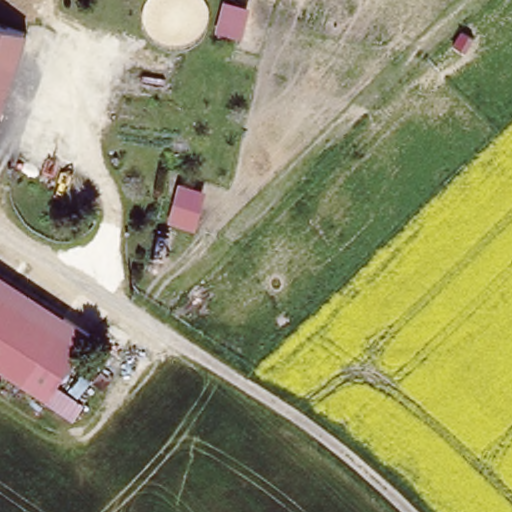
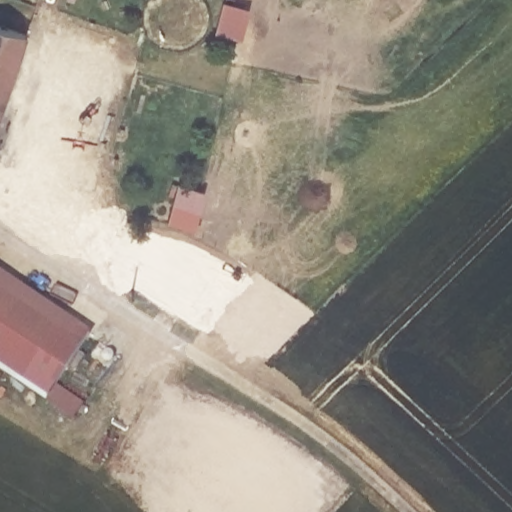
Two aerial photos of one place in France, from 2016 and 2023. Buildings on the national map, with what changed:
unchanged [(223,1),(249,8),(241,40),(214,33),(223,1)]
unchanged [(25,30),(0,104),(0,21),(25,30)]
unchanged [(177,183),(206,192),(196,233),(166,223),(177,183)]
unchanged [(90,322),(82,336),(50,389),(0,358),(0,263),(90,322)]

